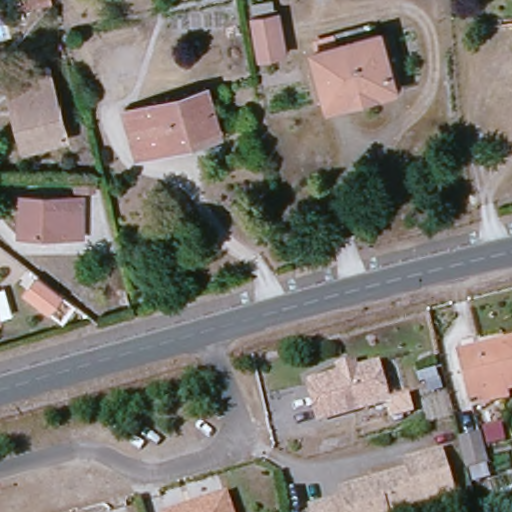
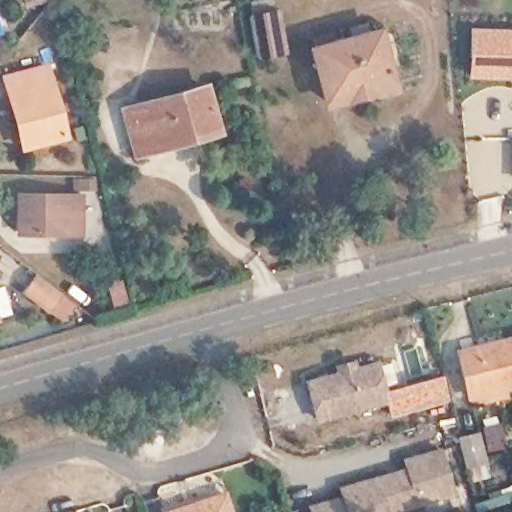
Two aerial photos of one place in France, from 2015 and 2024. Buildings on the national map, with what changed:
unchanged [(249,14),(278,10),(286,51),(256,57),(249,14)]
new [(468,26),(512,28),(512,81),(466,78),(468,26)]
unchanged [(350,102),(349,97),(328,102),(315,49),(380,33),(390,71),(394,90),(350,102)]
unchanged [(64,140),(32,149),(21,115),(15,118),(9,99),(5,79),(30,74),(46,69),(64,140)]
unchanged [(205,85),(217,129),(135,150),(124,105),(205,85)]
new [(501,194),(503,222),(479,226),(475,200),(501,194)]
unchanged [(62,236),(20,234),(20,202),(82,201),(85,215),(84,236),(62,236)]
unchanged [(70,303),(57,319),(34,301),(45,285),(70,303)]
unchanged [(0,318),(0,294),(6,316),(0,318)]
unchanged [(482,400),(480,384),(470,387),(460,346),(512,334),(512,378),(508,378),(510,396),(482,400)]
unchanged [(320,415),(309,380),(374,356),(386,395),(320,415)]
unchanged [(483,433),(488,465),(470,467),(463,436),(483,433)]
unchanged [(340,492),(398,473),(406,471),(403,462),(437,451),(450,494),(395,512),(309,512),(335,504),(342,501),(340,492)]
unchanged [(166,509),(227,490),(235,512),(167,512),(166,509)]

